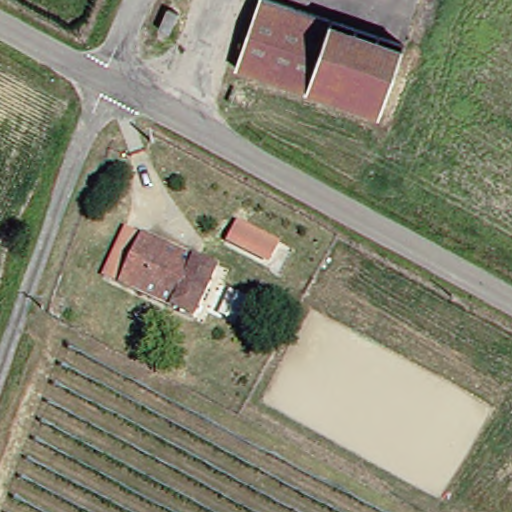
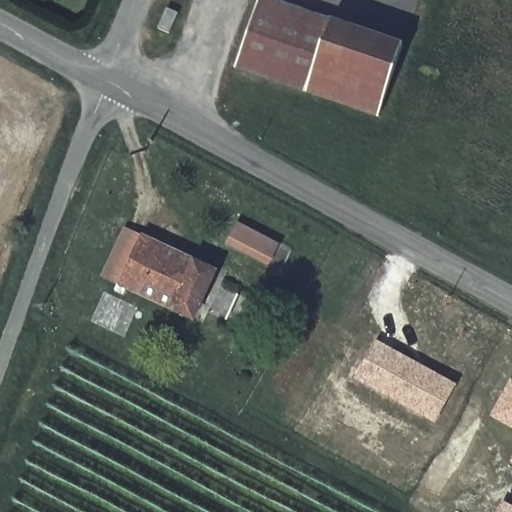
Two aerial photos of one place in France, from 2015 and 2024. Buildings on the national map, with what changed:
unchanged [(239,63),(260,0),(285,0),(335,16),(313,87),(239,63)]
unchanged [(171,28),(160,24),(168,5),(179,10),(171,28)]
unchanged [(405,39),(382,109),(313,87),(335,16),(405,39)]
unchanged [(222,242),(231,223),(280,246),(272,265),(222,242)]
unchanged [(116,277),(141,228),(157,236),(133,285),(116,277)]
unchanged [(205,321),(133,285),(157,236),(230,273),(205,321)]
new [(457,382),(437,419),(357,375),(377,338),(457,382)]
new [(492,413),(512,376),(512,422),(492,413)]
new [(512,504),(512,512),(496,512),(503,498),(512,504)]

